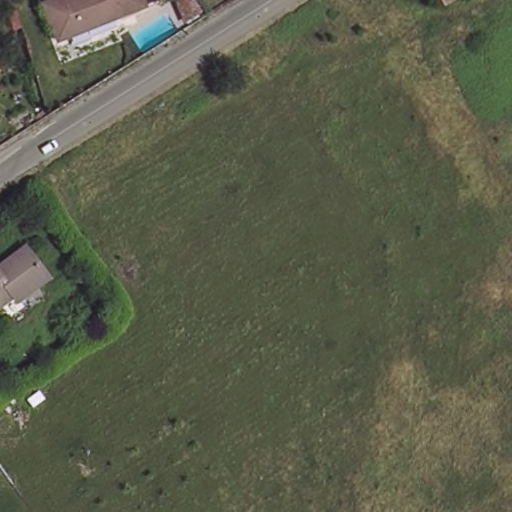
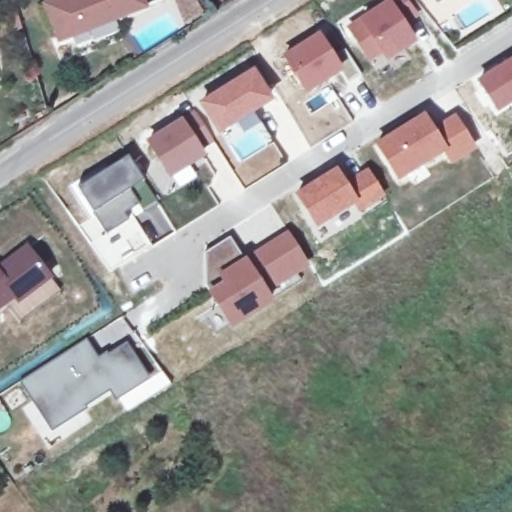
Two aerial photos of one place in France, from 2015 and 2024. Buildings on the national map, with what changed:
unchanged [(46,7),(66,0),(140,0),(144,11),(59,42),(46,7)]
unchanged [(175,0),(190,0),(197,12),(185,21),(175,0)]
new [(347,27),(357,18),(383,2),(382,0),(407,0),(419,15),(405,24),(417,43),(386,62),(380,52),(368,61),(347,27)]
unchanged [(443,5),(441,0),(451,0),(443,5)]
new [(348,84),(342,70),(305,95),(282,56),(318,32),(333,56),(345,50),(362,76),(348,84)]
new [(477,81),(512,59),(512,104),(497,113),(477,81)]
new [(218,136),(198,103),(255,68),(274,101),(218,136)]
new [(194,114),(211,142),(197,151),(201,157),(168,177),(147,144),(194,114)]
new [(425,117),(434,132),(457,117),(474,145),(450,160),(443,150),(397,178),(377,145),(425,117)]
new [(77,187),(128,155),(157,202),(143,211),(135,199),(117,211),(125,222),(105,234),(77,187)]
new [(293,193),(336,166),(345,179),(366,167),(383,195),(355,212),(352,204),(314,227),(293,193)]
new [(228,237),(243,259),(287,232),(308,266),(266,292),(275,304),(232,330),(208,292),(203,284),(203,252),(228,237)]
unchanged [(45,282),(13,306),(10,300),(0,307),(0,273),(0,272),(0,268),(23,251),(45,282)]
new [(18,381),(85,337),(97,357),(124,341),(148,378),(114,400),(107,390),(83,406),(85,408),(50,430),(18,381)]

